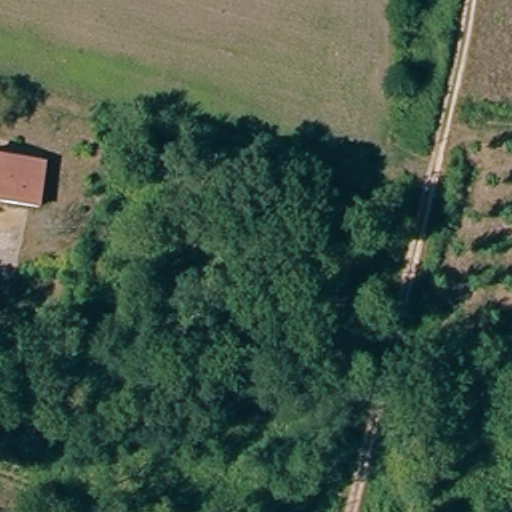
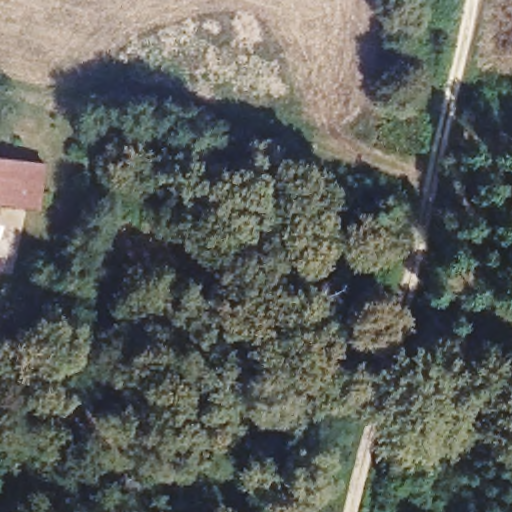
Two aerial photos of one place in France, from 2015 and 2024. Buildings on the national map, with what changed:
unchanged [(45,166),(37,210),(0,204),(0,158),(45,166)]

